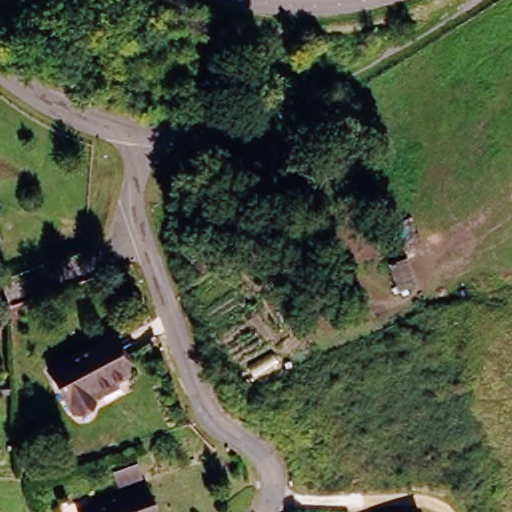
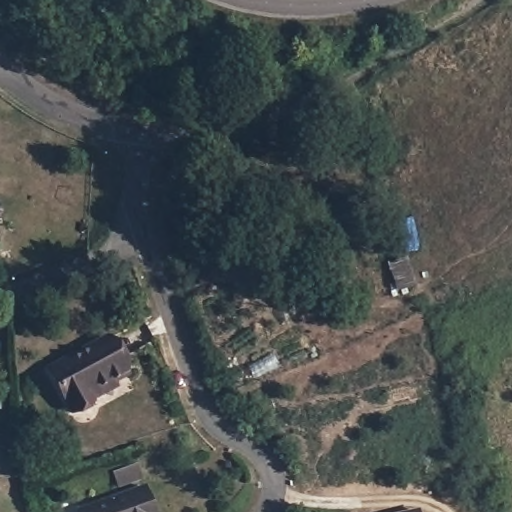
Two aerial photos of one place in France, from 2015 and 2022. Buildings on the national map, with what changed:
unchanged [(92,399),(72,409),(48,366),(77,349),(105,335),(126,373),(112,380),(116,386),(92,399)]
unchanged [(138,462),(142,475),(119,483),(115,470),(138,462)]
unchanged [(78,507),(92,502),(145,484),(155,512),(80,512),(78,507)]
unchanged [(420,512),(415,512),(420,511),(420,512)]

